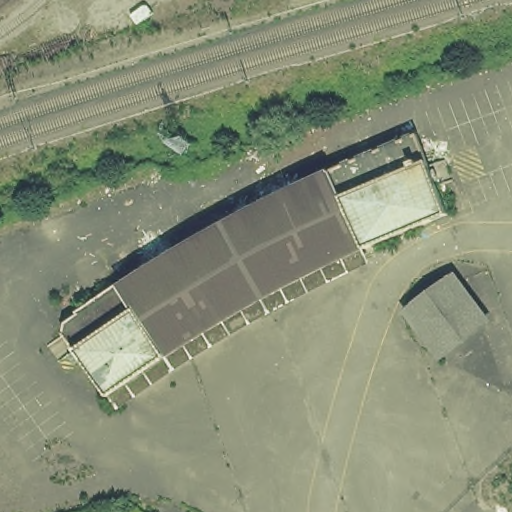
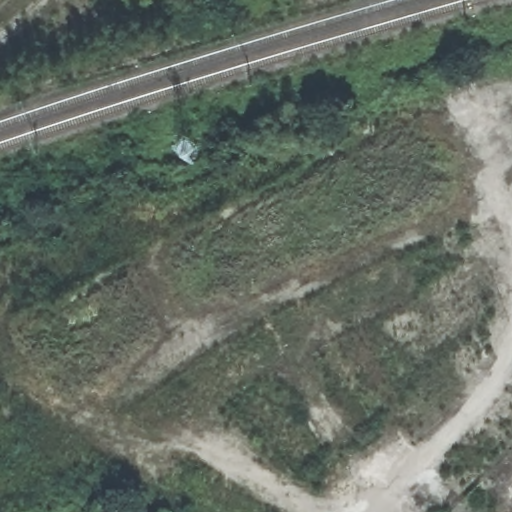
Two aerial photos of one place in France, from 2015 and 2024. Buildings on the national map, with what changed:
demolished [(448,211),(366,245),(373,260),(360,270),(261,318),(179,360),(118,401),(57,319),(85,293),(155,246),(241,192),(325,149),(335,166),(363,154),(419,133),(448,211)]
demolished [(490,318),(441,357),(404,310),(452,274),(490,318)]

